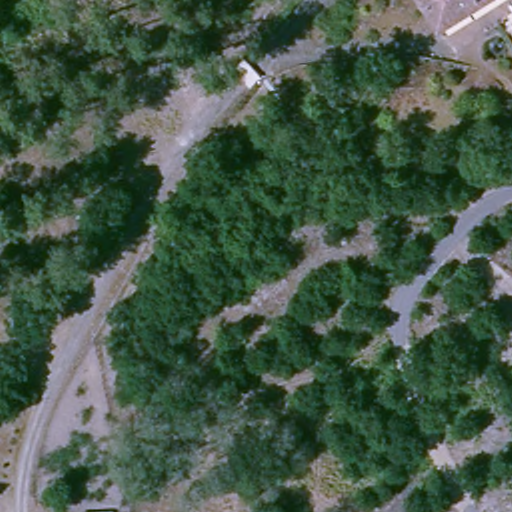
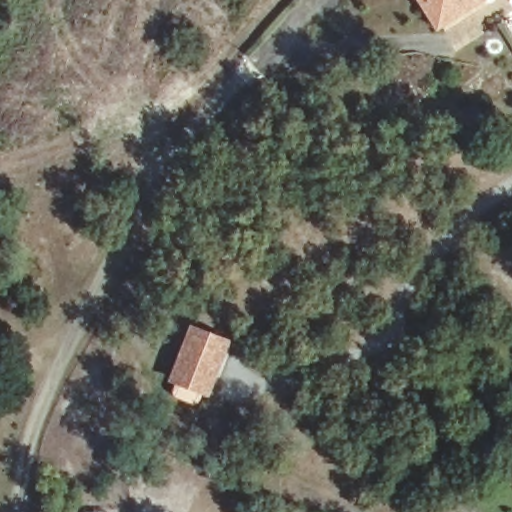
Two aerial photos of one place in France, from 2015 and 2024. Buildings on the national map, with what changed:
unchanged [(422,0),(493,0),(436,28),(422,0)]
new [(232,340),(210,397),(170,383),(192,322),(232,340)]

